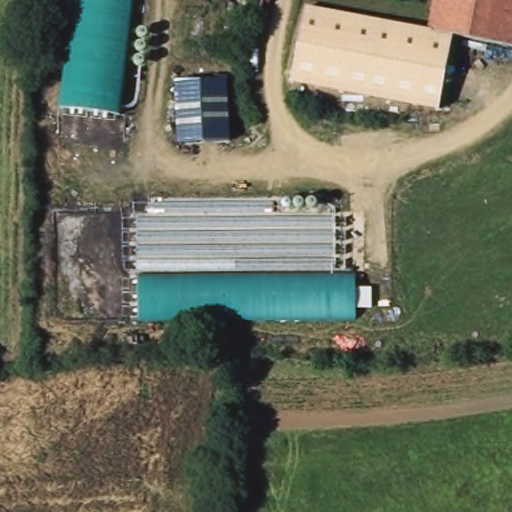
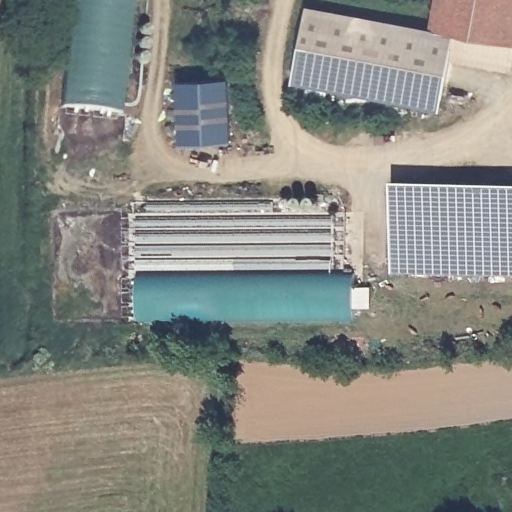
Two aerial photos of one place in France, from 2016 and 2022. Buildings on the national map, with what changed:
unchanged [(135,24),(148,26),(143,64),(126,62),(118,118),(60,110),(73,0),(138,0),(135,24)]
unchanged [(433,32),(440,0),(512,0),(512,48),(441,34),(433,32)]
unchanged [(439,109),(292,82),(308,5),(433,32),(441,34),(451,36),(439,109)]
unchanged [(229,80),(233,140),(178,144),(177,81),(229,80)]
new [(512,195),(512,286),(389,275),(397,185),(512,195)]
unchanged [(295,206),(292,205),(292,194),(322,194),(322,206),(321,206),(339,206),(339,252),(129,255),(128,209),(295,206)]
unchanged [(131,271),(367,268),(368,318),(132,322),(131,271)]

